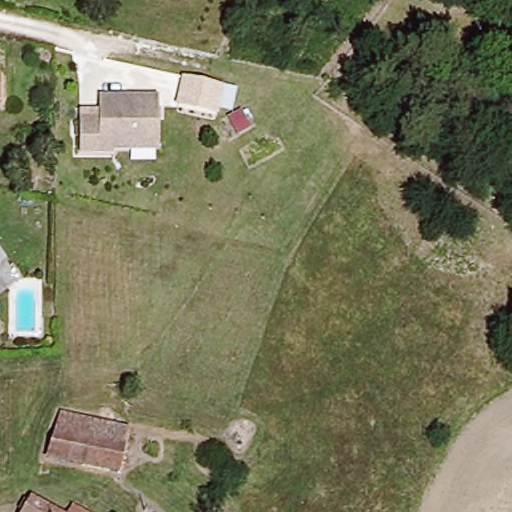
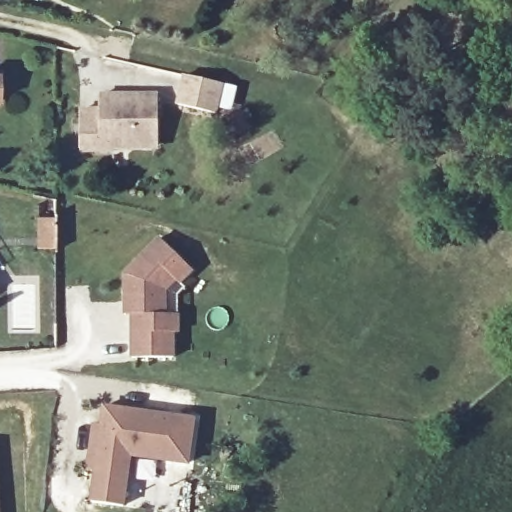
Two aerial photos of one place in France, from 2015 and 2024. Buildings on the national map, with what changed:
unchanged [(225,85),(218,115),(175,103),(181,75),(225,85)]
unchanged [(80,124),(100,124),(100,97),(158,95),(160,150),(115,151),(112,155),(80,155),(80,124)]
new [(49,220),(50,250),(32,250),(32,220),(49,220)]
new [(195,272),(182,286),(187,290),(180,296),(181,334),(175,335),(175,358),(129,358),(129,315),(122,315),(122,273),(159,237),(195,272)]
new [(188,465),(130,456),(124,505),(90,500),(102,405),(194,418),(188,465)]
demolished [(115,472),(49,458),(59,415),(125,430),(115,472)]
demolished [(55,512),(19,512),(27,497),(55,512)]
demolished [(69,505),(81,512),(66,512),(69,505)]

